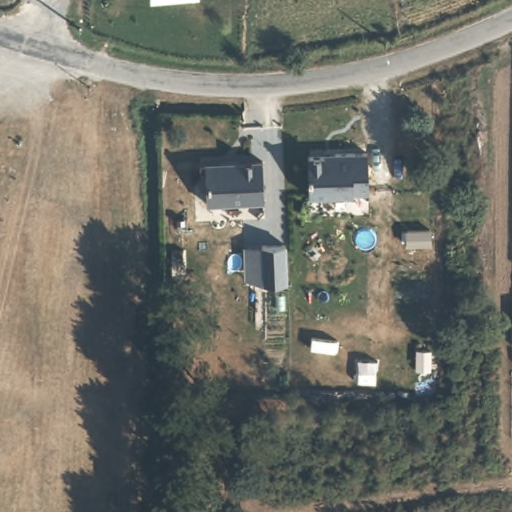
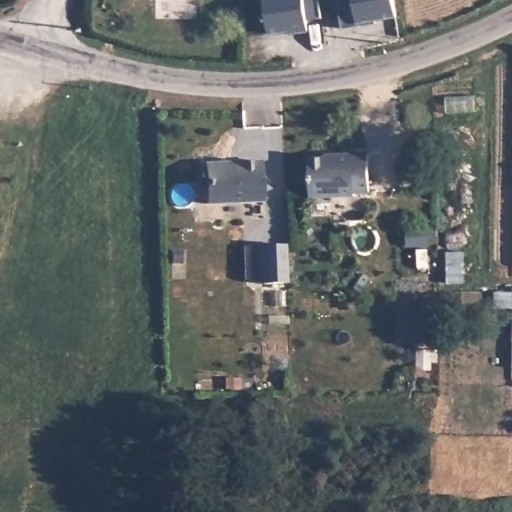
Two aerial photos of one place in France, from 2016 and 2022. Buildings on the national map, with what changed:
new [(306,20),(307,33),(290,35),(290,33),(268,35),(263,0),(317,0),(320,18),(306,20)]
new [(375,23),(340,28),(335,0),(392,0),(395,17),(374,21),(375,23)]
unchanged [(341,158),(341,156),(373,155),(374,195),(359,195),(359,197),(313,198),(312,159),(341,158)]
unchanged [(209,164),(267,163),(267,202),(211,204),(209,164)]
unchanged [(290,282),(262,284),(247,278),(247,246),(263,245),(288,245),(290,282)]

